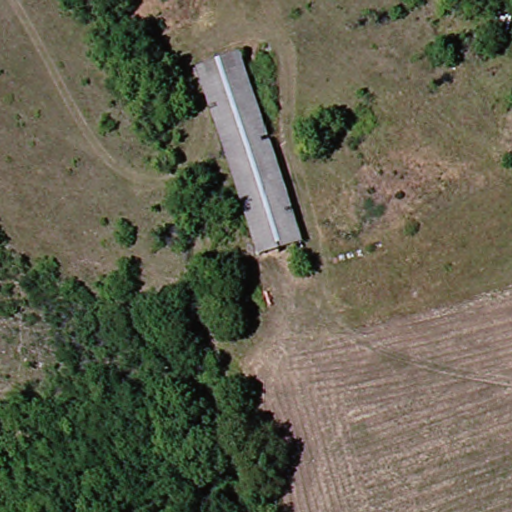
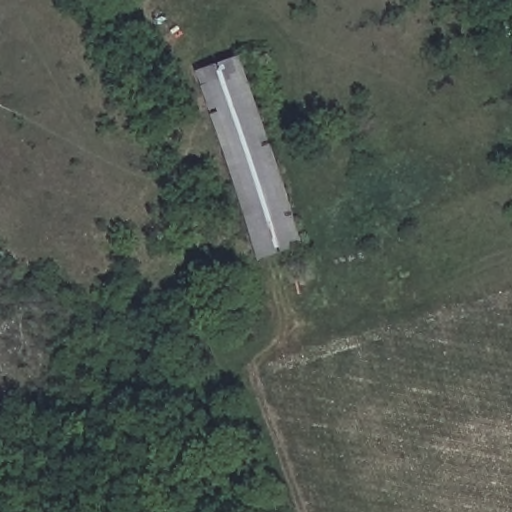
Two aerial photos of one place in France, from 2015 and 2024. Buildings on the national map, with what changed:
unchanged [(255,56),(306,245),(262,257),(211,68),(255,56)]

